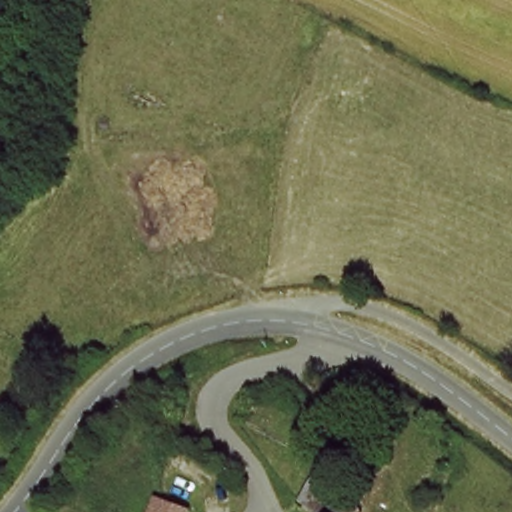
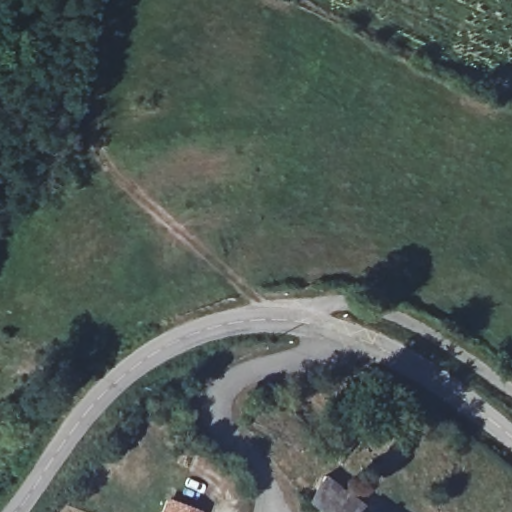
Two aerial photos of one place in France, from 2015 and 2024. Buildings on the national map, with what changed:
unchanged [(172,501),(200,512),(167,512),(172,501)]

